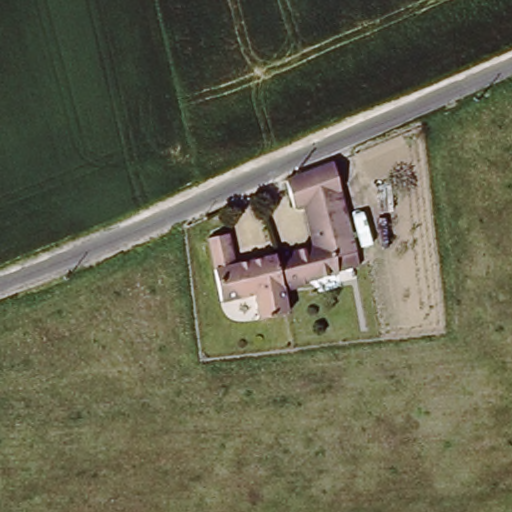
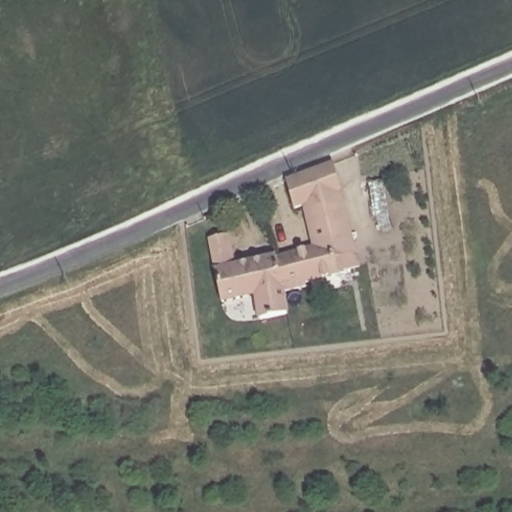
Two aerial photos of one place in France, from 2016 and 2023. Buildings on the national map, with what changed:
unchanged [(254,294),(221,301),(218,283),(209,236),(226,232),(233,263),(311,246),(301,204),(294,205),(289,182),(288,178),(314,170),(319,168),(333,162),(339,192),(346,237),(331,240),(337,272),(306,277),(308,283),(286,287),(289,308),(279,312),(259,318),(254,294)]

